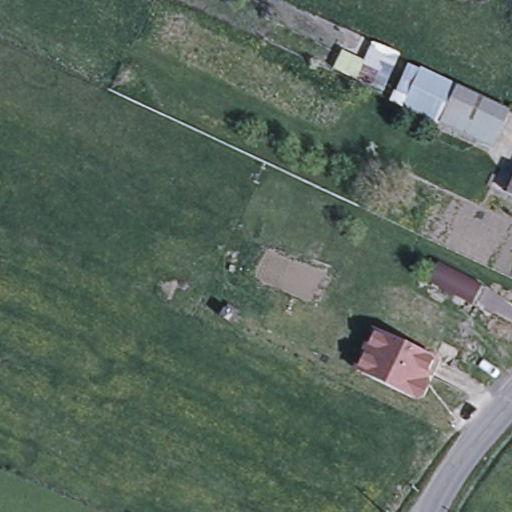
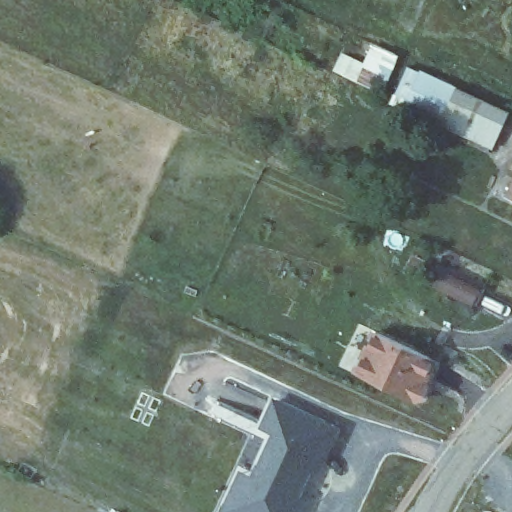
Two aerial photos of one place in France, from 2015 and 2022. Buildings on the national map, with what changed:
unchanged [(486,101),(469,136),(417,112),(432,77),(486,101)]
unchanged [(478,287),(469,307),(426,287),(436,267),(478,287)]
unchanged [(436,359),(426,382),(429,384),(422,401),(359,373),(378,331),(436,359)]
new [(298,512),(224,512),(242,472),(256,478),(277,432),(263,426),(275,400),(336,428),(317,469),(312,466),(297,497),(304,500),(298,512)]

